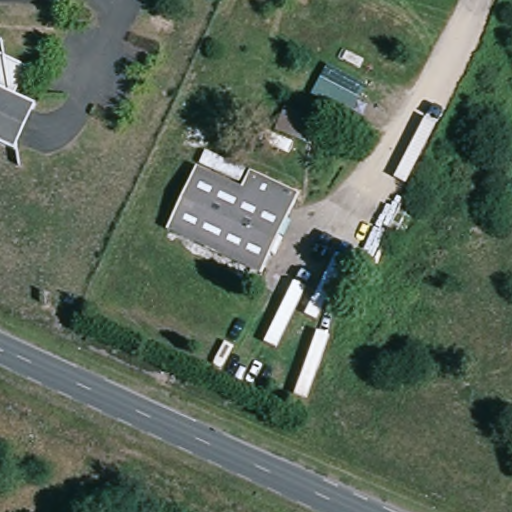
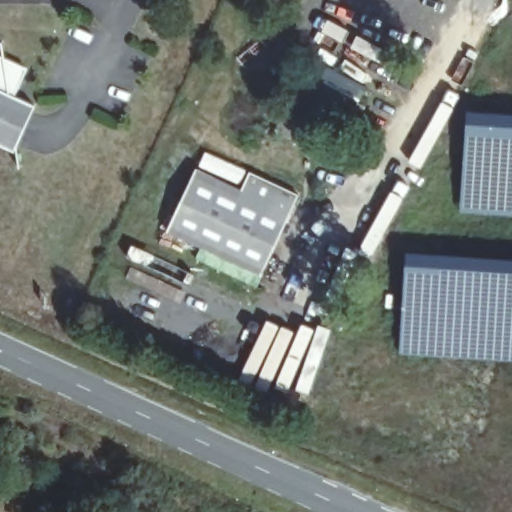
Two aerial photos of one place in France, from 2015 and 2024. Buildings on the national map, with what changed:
unchanged [(25,67),(11,94),(34,106),(11,151),(0,147),(0,55),(25,67)]
unchanged [(367,81),(352,110),(311,94),(325,64),(367,81)]
new [(283,104),(316,119),(307,139),(274,124),(283,104)]
new [(466,111),(512,114),(512,215),(458,211),(465,121),(466,111)]
unchanged [(296,190),(255,273),(166,229),(195,167),(237,188),(246,166),(296,190)]
new [(405,262),(406,247),(512,255),(512,359),(398,351),(405,262)]

